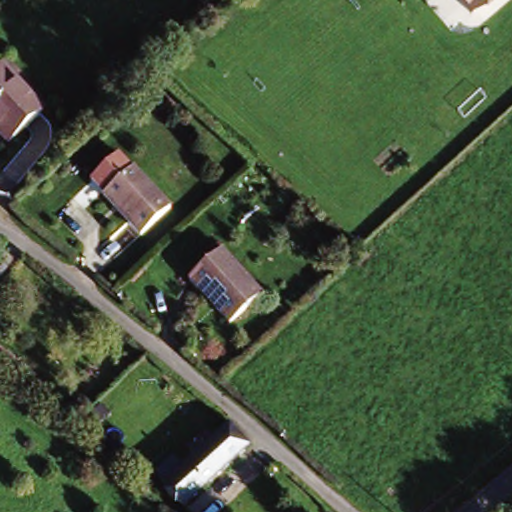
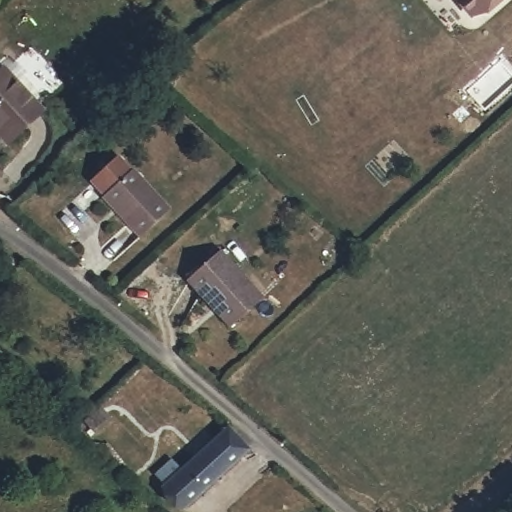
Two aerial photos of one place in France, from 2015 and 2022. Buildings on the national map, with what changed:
unchanged [(474,20),(456,0),(496,0),(474,20)]
unchanged [(3,69),(38,114),(3,143),(0,139),(0,71),(3,69)]
unchanged [(141,234),(103,191),(132,165),(170,207),(141,234)]
unchanged [(191,279),(223,250),(262,294),(230,323),(191,279)]
unchanged [(3,377),(25,394),(16,406),(0,392),(0,381),(3,377)]
unchanged [(225,427),(247,446),(186,506),(166,485),(177,475),(169,466),(186,447),(196,456),(225,427)]

